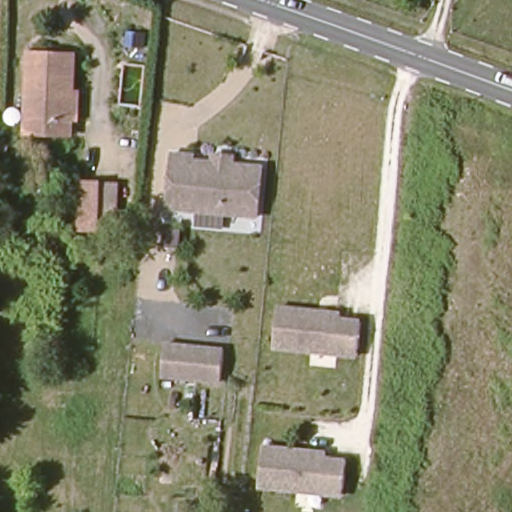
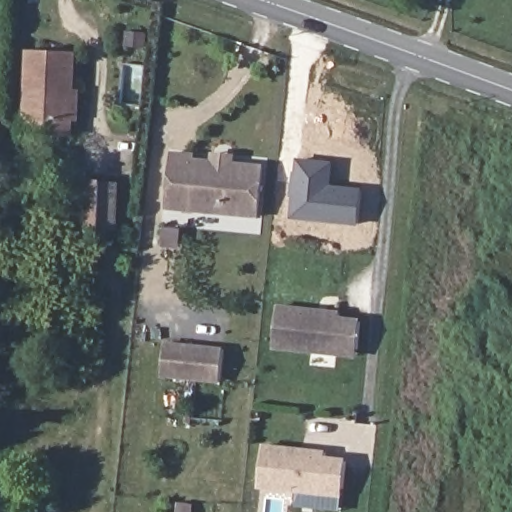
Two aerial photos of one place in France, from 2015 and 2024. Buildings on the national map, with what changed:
unchanged [(27,135),(29,54),(76,55),(74,137),(27,135)]
unchanged [(256,219),(166,208),(173,154),(194,156),(194,161),(214,163),(214,155),(234,156),(234,166),(262,169),(256,219)]
new [(362,188),(360,225),(291,218),(297,157),(334,161),(332,185),(362,188)]
unchanged [(106,226),(84,225),(87,180),(107,181),(106,226)]
unchanged [(342,347),(341,353),(278,347),(282,307),(344,312),(345,319),(366,320),(365,347),(342,347)]
unchanged [(220,378),(161,372),(164,340),(222,345),(220,378)]
unchanged [(346,489),(326,489),(326,495),(261,490),(263,449),(327,453),(327,462),(347,462),(346,489)]

